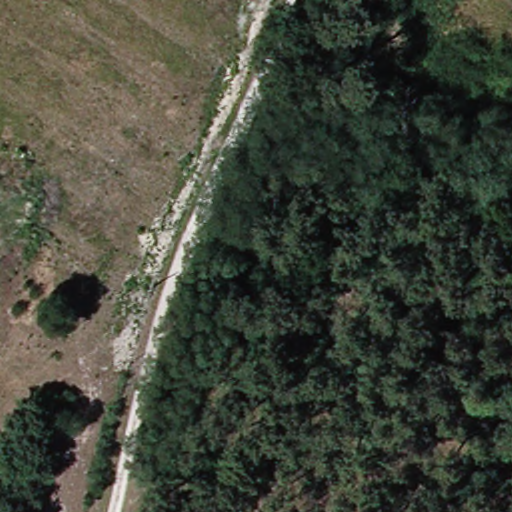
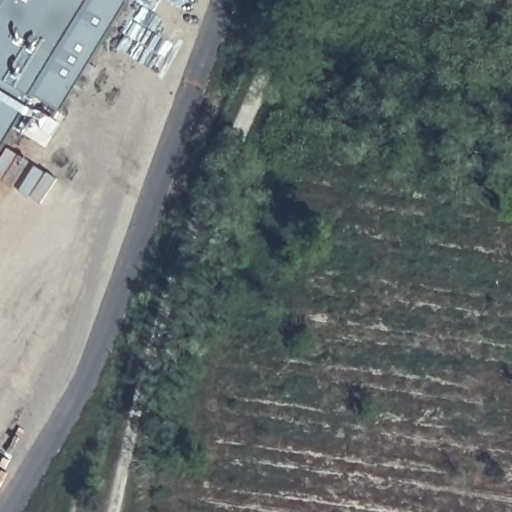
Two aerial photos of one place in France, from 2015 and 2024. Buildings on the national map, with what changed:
new [(59,106),(32,90),(0,142),(0,0),(122,0),(59,106)]

